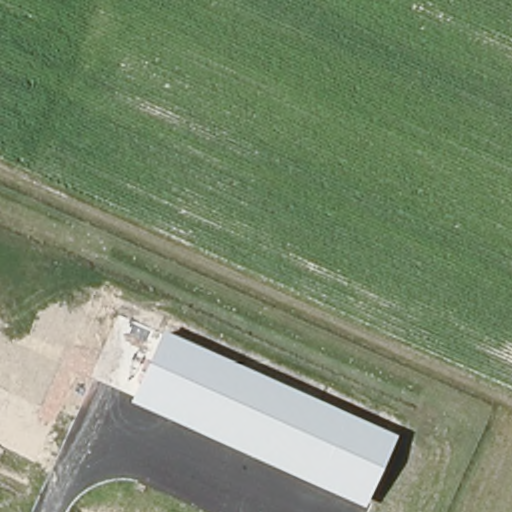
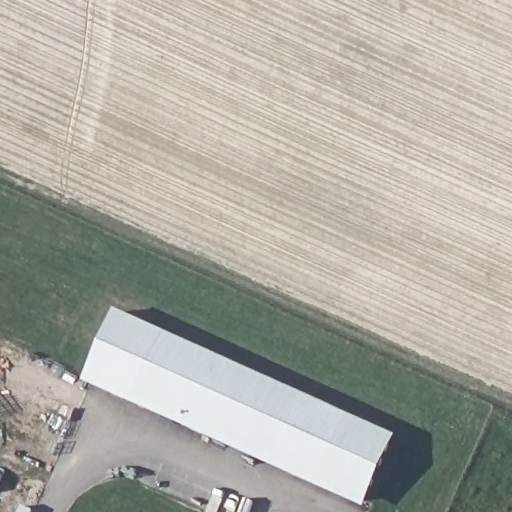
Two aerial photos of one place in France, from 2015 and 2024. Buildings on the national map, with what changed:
new [(130,404),(85,383),(115,312),(161,333),(130,404)]
unchanged [(364,509),(130,404),(161,333),(397,437),(364,509)]

